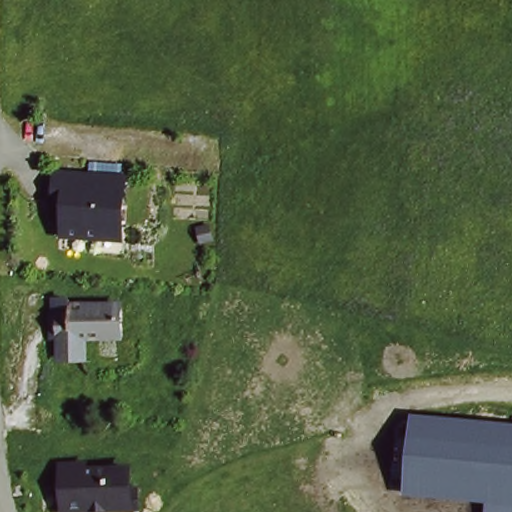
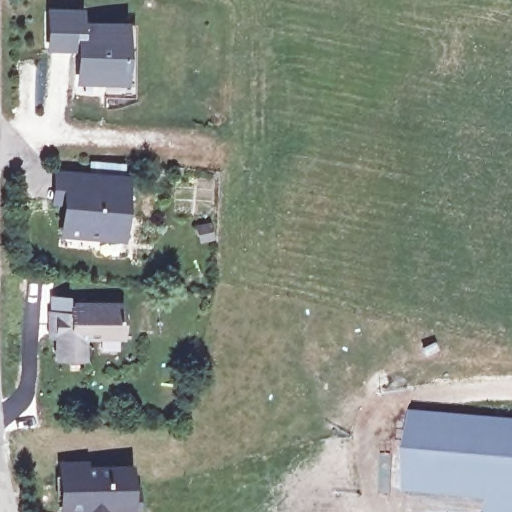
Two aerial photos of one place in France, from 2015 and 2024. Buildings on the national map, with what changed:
new [(139,97),(106,97),(107,86),(79,86),(80,53),(50,52),(50,9),(88,8),(88,22),(131,20),(131,26),(139,27),(139,97)]
unchanged [(123,237),(63,232),(65,196),(55,195),(55,171),(90,172),(126,174),(123,237)]
unchanged [(64,327),(64,301),(120,302),(119,333),(83,333),(83,353),(54,352),(55,327),(64,327)]
unchanged [(487,502),(403,498),(409,412),(512,420),(512,512),(485,512),(487,502)]
unchanged [(65,490),(65,460),(93,461),(93,470),(138,473),(137,508),(115,508),(115,512),(93,512),(90,505),(73,505),(64,506),(65,490)]

